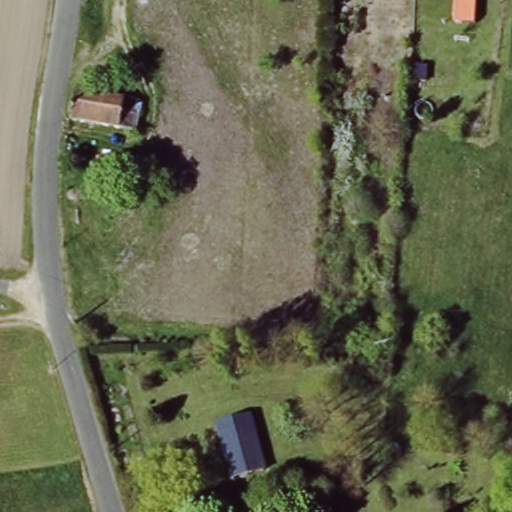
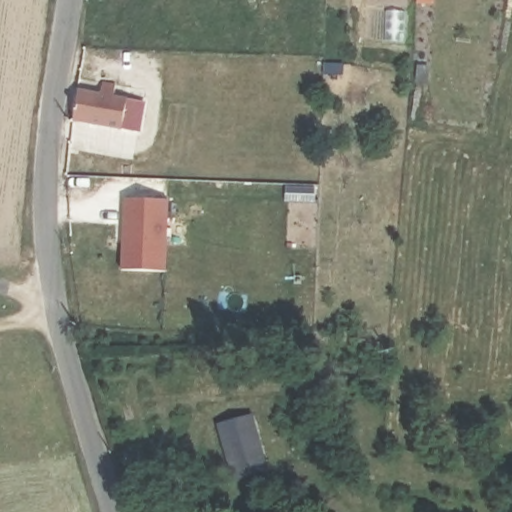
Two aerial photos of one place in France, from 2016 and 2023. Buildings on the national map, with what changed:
unchanged [(481,19),(459,18),(460,0),(482,0),(481,19)]
unchanged [(139,132),(77,126),(80,98),(101,100),(102,88),(117,90),(115,102),(142,105),(139,132)]
new [(122,270),(123,196),(169,199),(166,272),(122,270)]
unchanged [(255,413),(268,469),(227,478),(214,422),(255,413)]

